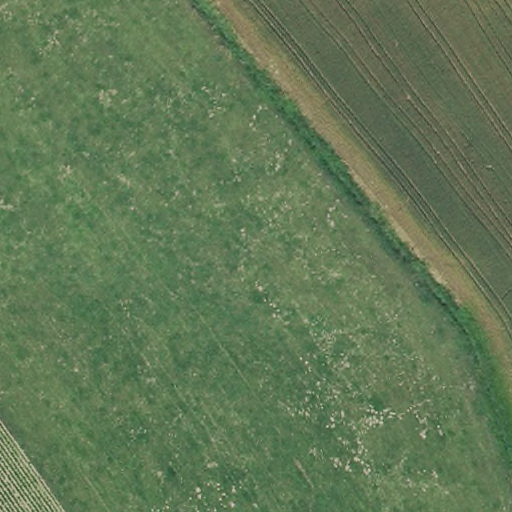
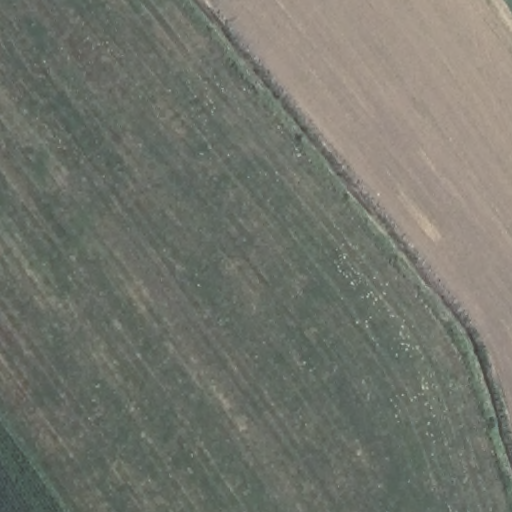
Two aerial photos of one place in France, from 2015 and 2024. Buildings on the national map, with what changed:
[]

